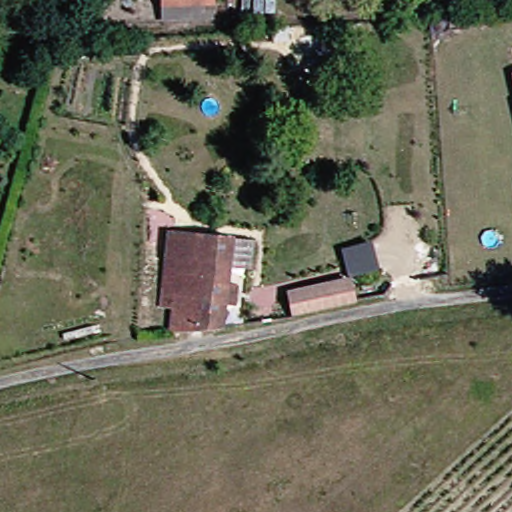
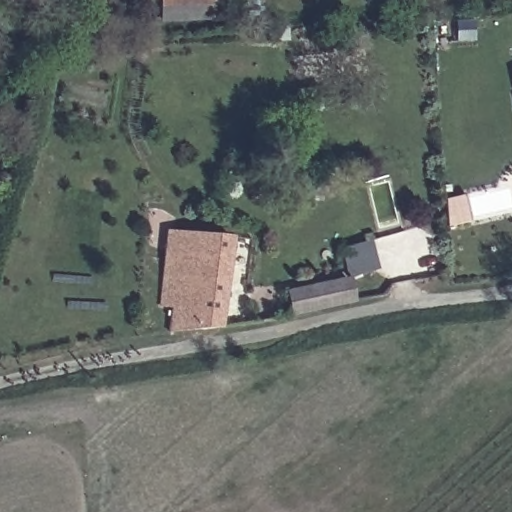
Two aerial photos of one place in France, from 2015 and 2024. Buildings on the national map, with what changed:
unchanged [(169,0),(220,0),(220,5),(169,8),(169,0)]
unchanged [(269,35),(286,33),(287,47),(270,48),(269,35)]
unchanged [(298,41),(336,40),(337,56),(300,59),(298,41)]
unchanged [(174,330),(177,305),(165,304),(173,228),(235,234),(225,326),(174,330)]
unchanged [(283,289),(344,276),(345,279),(364,276),(368,295),(348,297),(288,311),(283,289)]

